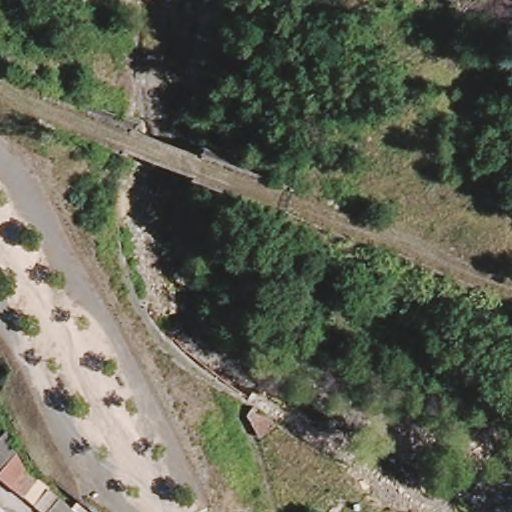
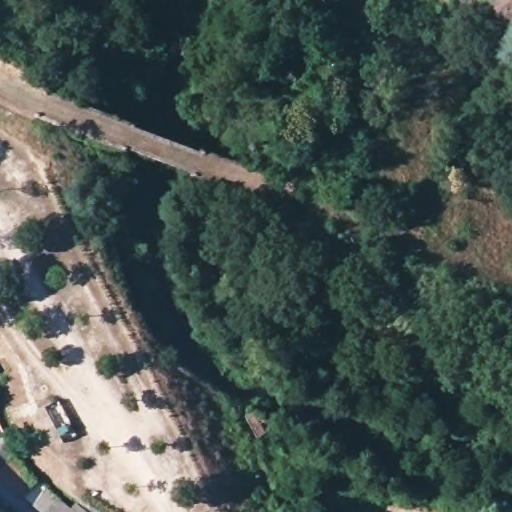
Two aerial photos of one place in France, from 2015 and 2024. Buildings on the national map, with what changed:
unchanged [(272,431),(255,442),(244,422),(249,413),(272,431)]
unchanged [(0,435),(4,431),(14,455),(0,471),(0,435)]
unchanged [(21,497),(0,481),(0,471),(14,455),(17,463),(20,470),(27,477),(33,482),(34,482),(45,491),(32,507),(21,497)]
unchanged [(32,507),(45,491),(72,512),(38,512),(32,507)]

